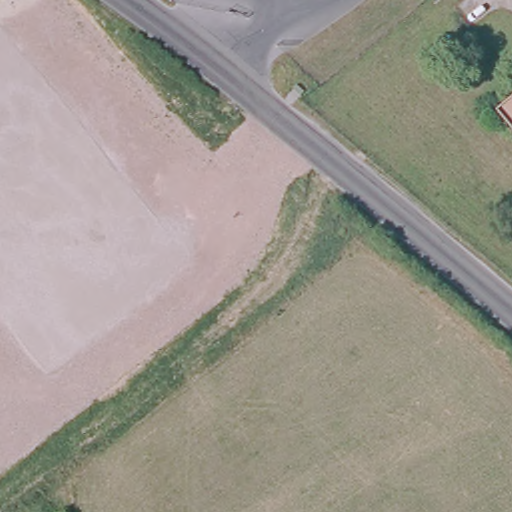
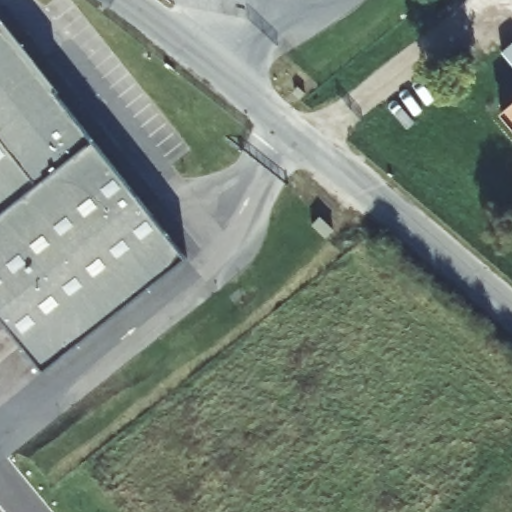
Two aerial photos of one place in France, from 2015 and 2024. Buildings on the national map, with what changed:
new [(44,371),(0,316),(0,23),(187,258),(44,371)]
unchanged [(502,117),(512,109),(512,129),(502,117)]

